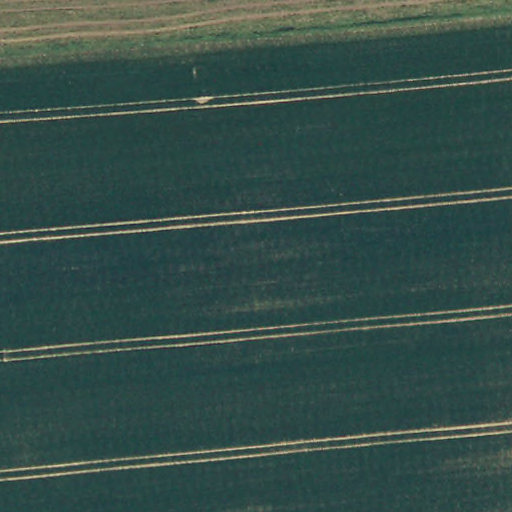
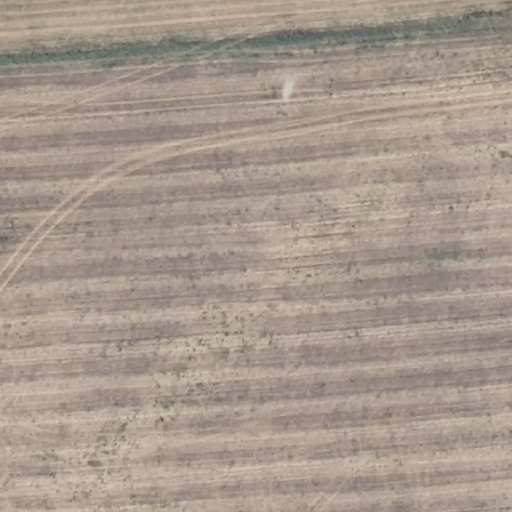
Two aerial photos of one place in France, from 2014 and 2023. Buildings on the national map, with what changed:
[]

